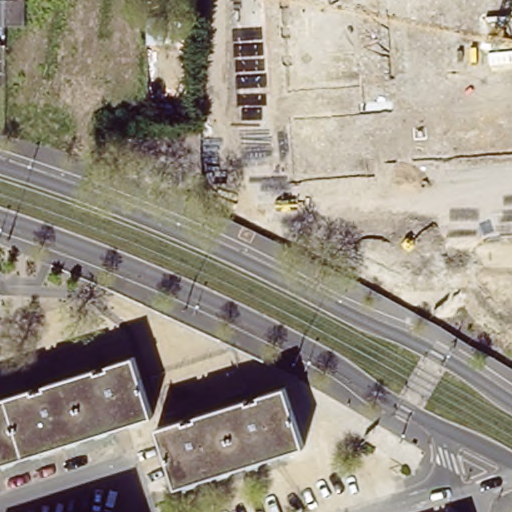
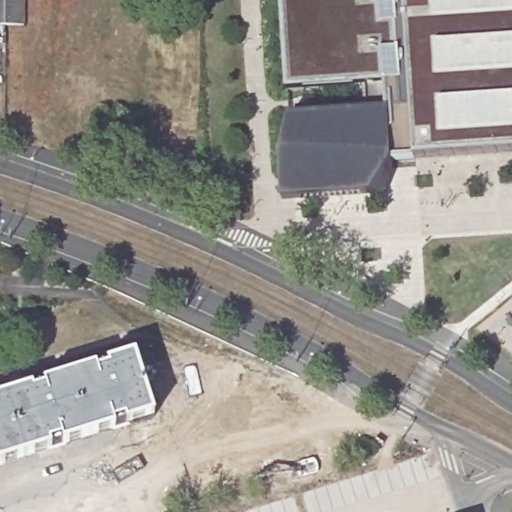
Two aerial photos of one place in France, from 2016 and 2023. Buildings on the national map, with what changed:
unchanged [(19,0),(19,25),(0,24),(0,0),(19,0)]
new [(391,160),(371,196),(285,201),(278,156),(289,114),(363,111),(360,86),(287,91),(281,0),(512,0),(512,151),(415,159),(391,160)]
demolished [(162,17),(162,43),(147,43),(147,17),(162,17)]
unchanged [(153,417),(0,463),(0,399),(136,359),(153,417)]
unchanged [(275,455),(260,460),(206,477),(195,481),(175,487),(156,427),(286,387),(304,446),(275,455)]

